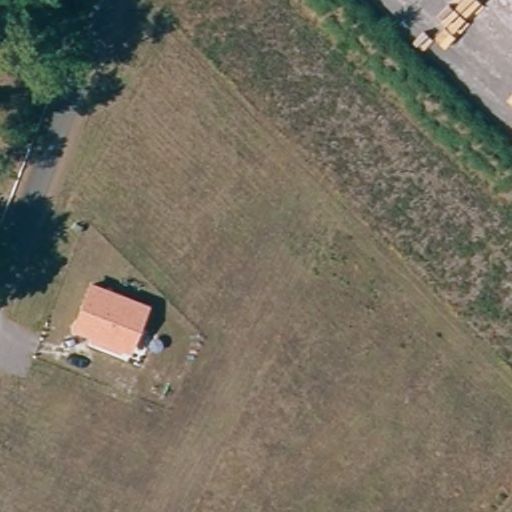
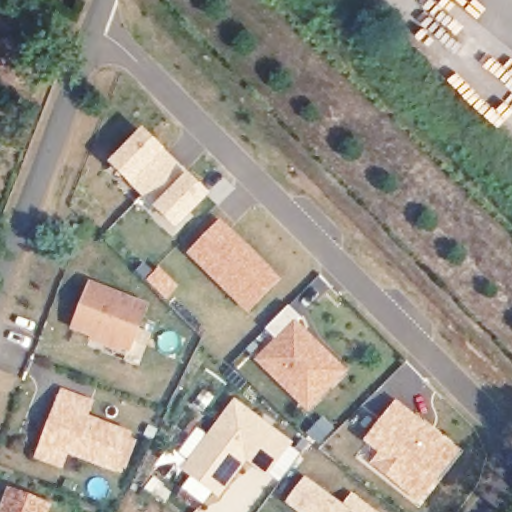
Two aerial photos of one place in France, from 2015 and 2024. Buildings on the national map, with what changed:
new [(179,232),(155,209),(153,211),(129,185),(130,184),(109,165),(143,130),(165,153),(188,175),(211,198),(179,232)]
new [(187,254),(221,222),(280,279),(245,316),(187,254)]
unchanged [(71,327),(90,279),(151,304),(133,351),(71,327)]
new [(255,362),(276,341),(266,330),(289,308),(301,319),(299,324),(346,373),(308,412),(255,362)]
new [(76,393),(91,399),(86,413),(130,429),(117,464),(81,451),(76,465),(52,456),(70,408),(76,393)]
new [(246,464),(219,499),(183,471),(235,401),(292,444),(267,479),(246,464)]
new [(380,454),(365,442),(396,404),(460,453),(417,504),(372,466),(380,454)]
new [(285,505),(305,479),(350,512),(295,512),(285,505)]
unchanged [(18,488),(56,504),(53,512),(8,512),(18,488)]

